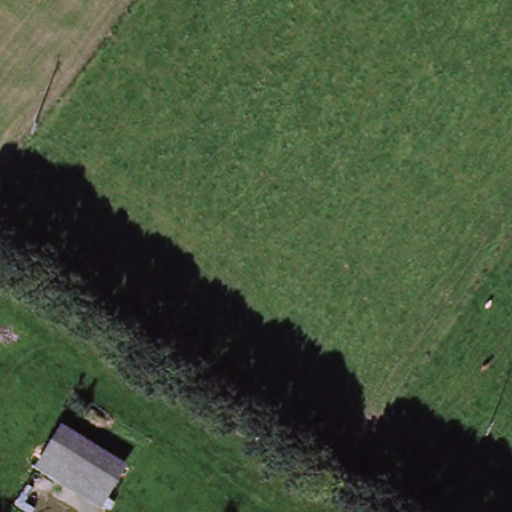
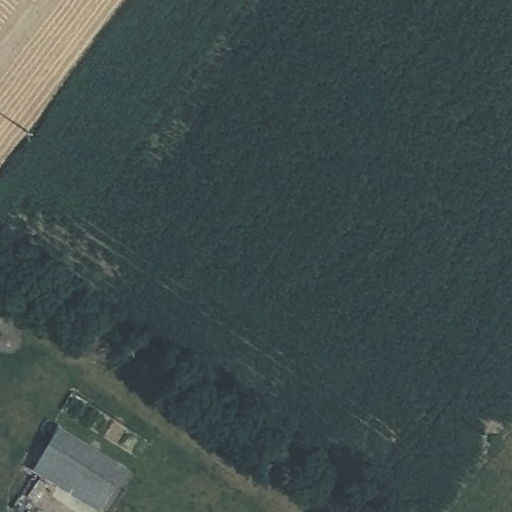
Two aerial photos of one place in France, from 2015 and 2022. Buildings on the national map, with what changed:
unchanged [(55,427),(124,464),(96,510),(34,477),(55,427)]

